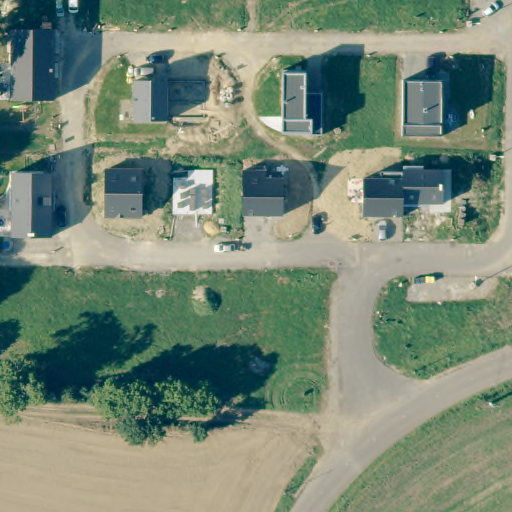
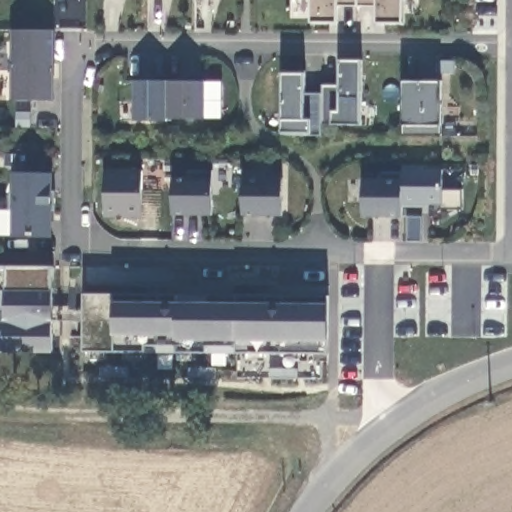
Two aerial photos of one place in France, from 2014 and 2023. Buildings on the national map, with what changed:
new [(375,24),(376,5),(336,5),(337,23),(311,23),(311,0),(402,0),(401,24),(375,24)]
unchanged [(14,31),(55,31),(55,100),(12,100),(14,31)]
new [(360,126),(332,125),(331,113),(339,113),(337,62),(362,62),(360,126)]
unchanged [(284,75),(306,75),(306,96),(322,95),(321,136),(309,135),(312,132),(283,132),(284,75)]
unchanged [(136,81),(168,83),(168,121),(135,121),(136,81)]
unchanged [(206,120),(168,119),(168,83),(205,82),(206,120)]
unchanged [(405,124),(405,83),(441,83),(441,126),(440,136),(402,137),(405,124)]
unchanged [(403,180),(402,173),(404,167),(423,167),(423,171),(443,170),(442,205),(420,204),(420,208),(402,207),(403,180)]
unchanged [(107,169),(144,170),(143,219),(105,218),(107,169)]
unchanged [(268,170),(268,179),(284,179),(283,216),(244,215),(245,171),(268,170)]
unchanged [(191,178),(189,172),(213,172),(212,178),(213,216),(173,216),(173,178),(191,178)]
unchanged [(365,180),(382,180),(381,172),(402,173),(403,180),(402,207),(402,217),(363,216),(365,180)]
unchanged [(14,174),(53,174),(52,238),(11,237),(14,174)]
new [(237,352),(236,347),(207,346),(207,353),(178,353),(177,346),(145,346),(145,352),(84,352),(85,322),(53,322),(52,353),(5,353),(0,352),(0,267),(7,268),(52,269),(52,313),(85,313),(86,296),(162,296),(179,296),(181,303),(212,303),(209,296),(270,297),(329,297),(327,353),(237,352)]

